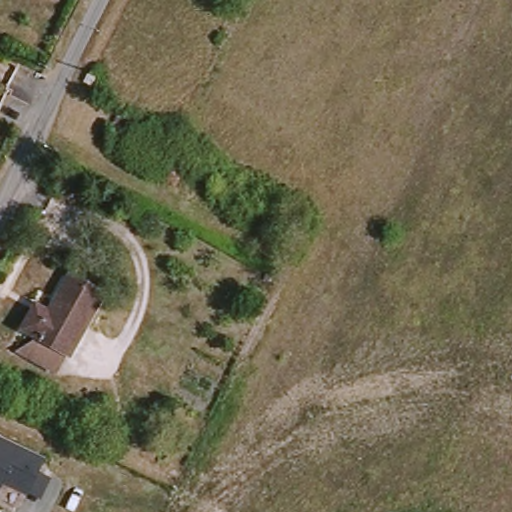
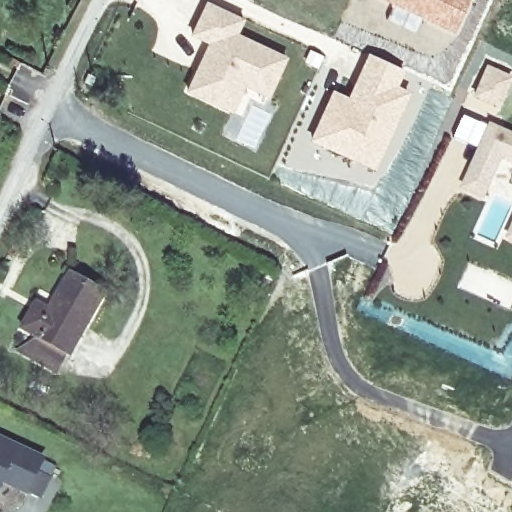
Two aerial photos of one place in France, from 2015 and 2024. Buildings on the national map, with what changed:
new [(215,100),(186,87),(194,69),(197,70),(211,41),(191,31),(206,0),(211,0),(242,15),(234,31),(283,55),(265,93),(241,81),(229,108),(215,100)]
new [(385,0),(468,0),(452,32),(385,0)]
new [(331,89),(346,95),(367,51),(404,69),(397,85),(410,91),(372,170),(307,139),(331,89)]
new [(486,67),(509,78),(497,105),(473,95),(486,67)]
new [(479,196),(459,187),(488,125),(512,137),(512,163),(497,156),(479,196)]
new [(512,221),(512,242),(504,239),(512,221)]
unchanged [(19,350),(39,337),(22,328),(32,311),(36,304),(51,312),(71,275),(106,295),(72,355),(69,353),(59,371),(19,350)]
unchanged [(47,459),(30,496),(7,486),(1,500),(0,499),(0,438),(47,459)]

